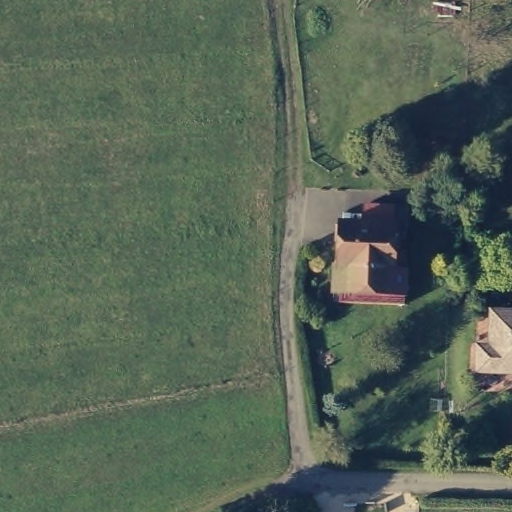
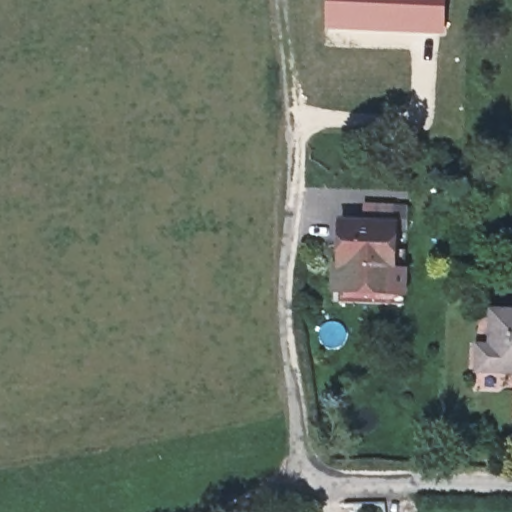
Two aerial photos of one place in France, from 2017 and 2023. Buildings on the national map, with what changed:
new [(329,0),(446,0),(445,30),(328,26),(329,0)]
unchanged [(395,273),(396,273),(395,300),(378,300),(363,299),(361,298),(330,297),(330,287),(324,286),(325,262),(331,262),(333,220),(356,221),(356,202),(384,202),(398,202),(398,222),(386,222),(385,246),(397,247),(396,272),(395,273)]
unchanged [(475,343),(487,343),(488,308),(512,309),(512,367),(474,366),(475,343)]

